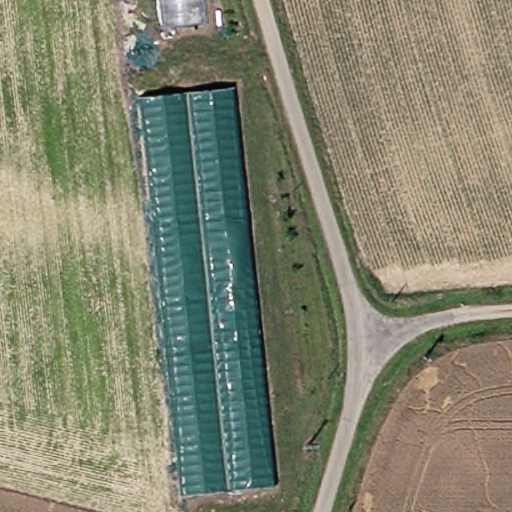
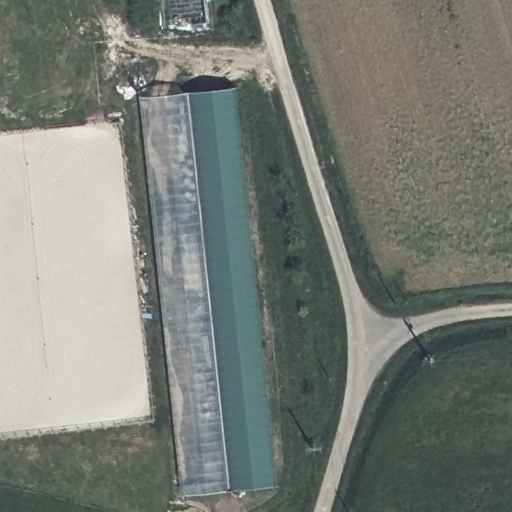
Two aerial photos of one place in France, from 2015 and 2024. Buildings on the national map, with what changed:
unchanged [(197,23),(155,26),(153,0),(196,0),(197,23)]
unchanged [(230,86),(272,489),(180,497),(137,95),(230,86)]

